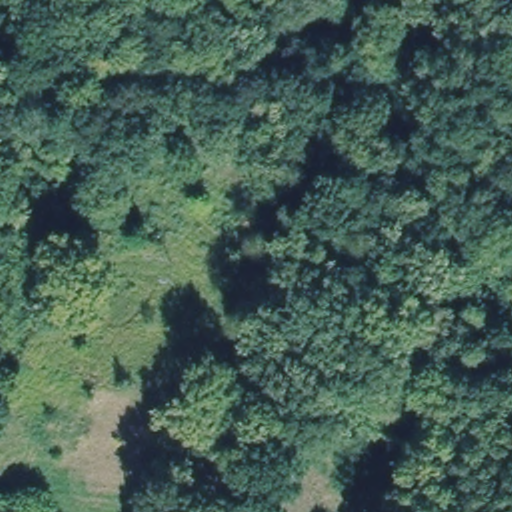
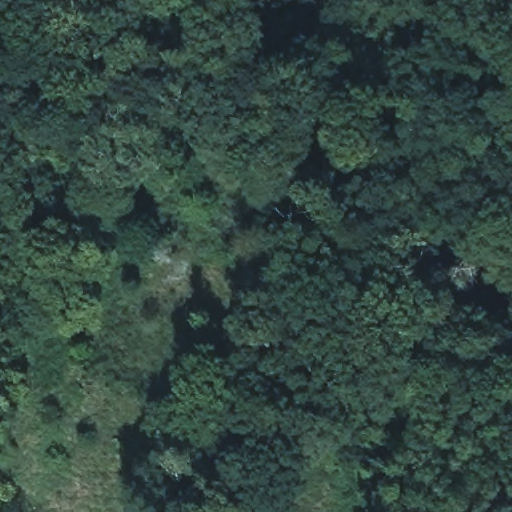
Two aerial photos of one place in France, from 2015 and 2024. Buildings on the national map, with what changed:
[]

